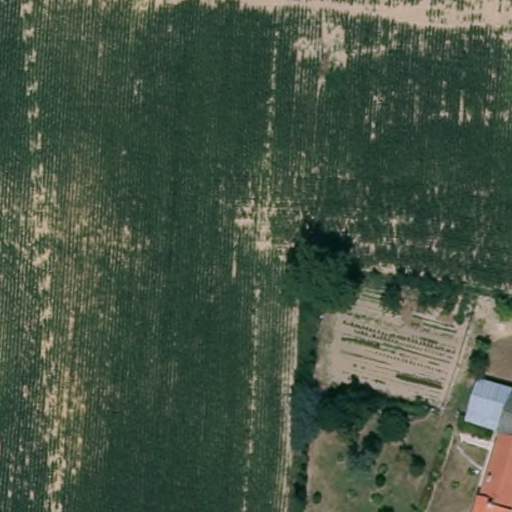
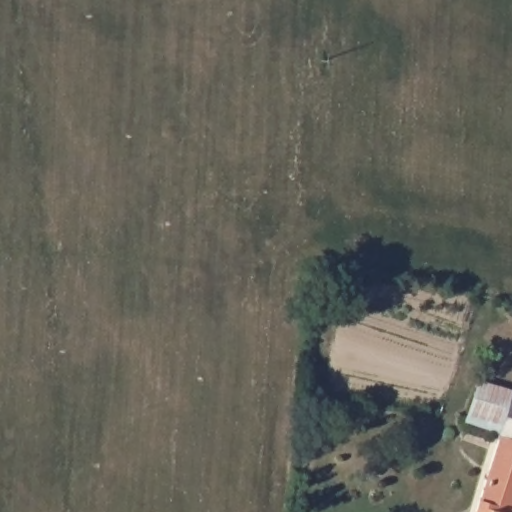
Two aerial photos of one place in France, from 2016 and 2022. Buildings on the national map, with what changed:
unchanged [(508,395),(512,396),(512,436),(498,432),(508,395)]
unchanged [(512,484),(486,476),(496,441),(498,432),(512,436),(512,484)]
unchanged [(512,512),(475,512),(486,476),(512,484),(512,512)]

